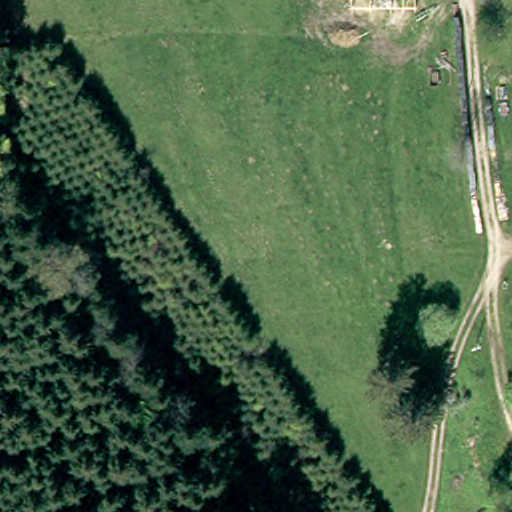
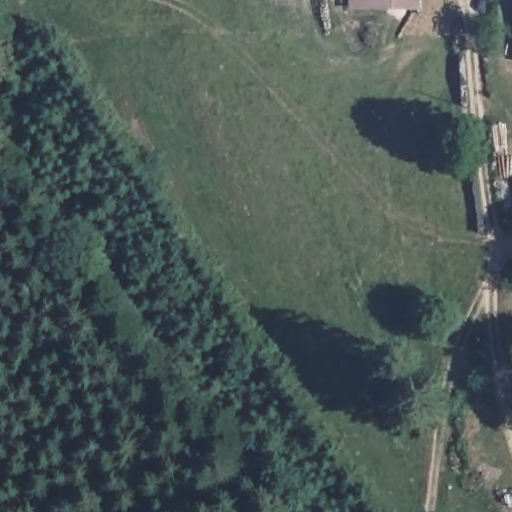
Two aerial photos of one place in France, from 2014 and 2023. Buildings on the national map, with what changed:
new [(349,9),(349,0),(421,0),(421,6),(349,9)]

